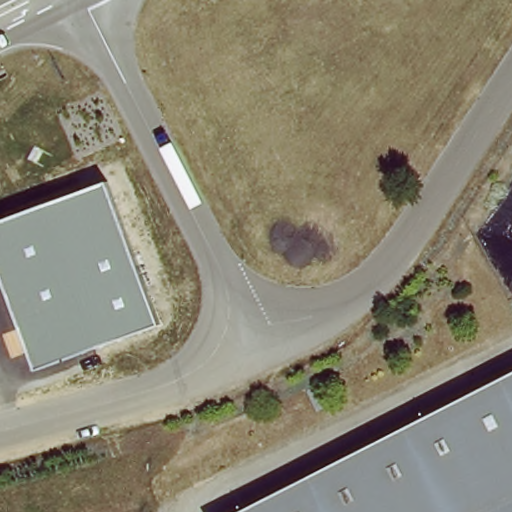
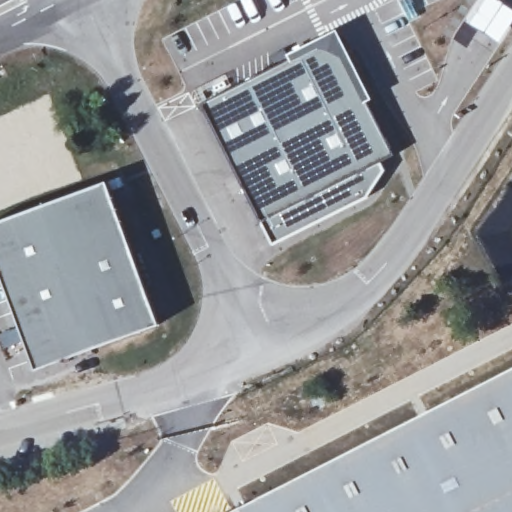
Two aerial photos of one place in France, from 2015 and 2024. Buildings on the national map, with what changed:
new [(470,22),(484,0),(499,0),(512,9),(512,25),(500,43),(470,22)]
new [(293,62),(289,55),(339,31),(373,99),(367,102),(395,157),(381,163),(385,172),(367,199),(273,247),(200,106),(293,62)]
unchanged [(37,371),(0,276),(0,221),(109,181),(161,325),(37,371)]
unchanged [(512,371),(512,512),(236,512),(512,371)]

